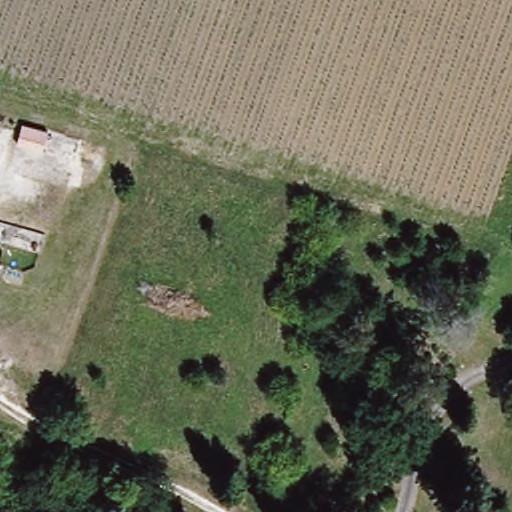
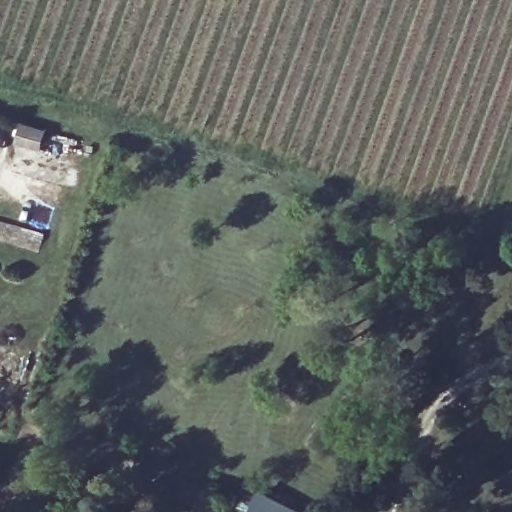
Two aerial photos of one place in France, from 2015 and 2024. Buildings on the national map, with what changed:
unchanged [(0,454),(4,456),(0,467),(0,454)]
new [(260,493),(309,512),(252,512),(260,493)]

